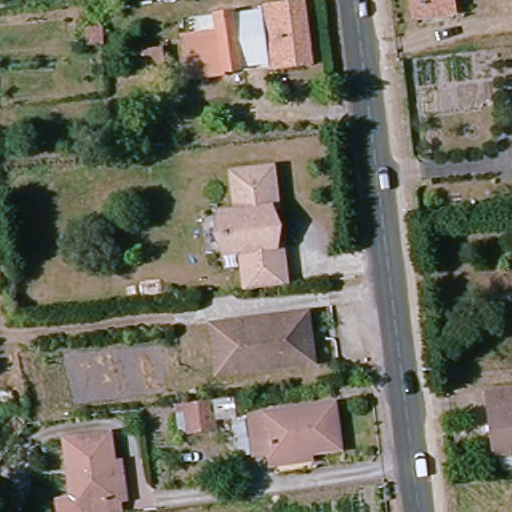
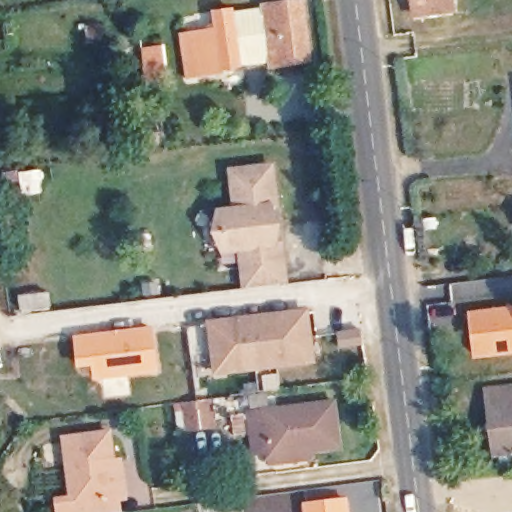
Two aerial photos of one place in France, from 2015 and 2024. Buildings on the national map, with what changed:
unchanged [(412,21),(409,0),(450,0),(452,15),(412,21)]
unchanged [(261,10),(300,5),(308,65),(268,70),(267,64),(262,21),(261,10)]
unchanged [(197,72),(193,35),(216,32),(214,15),(233,12),(235,24),(240,67),(197,72)]
unchanged [(235,24),(262,21),(267,64),(240,67),(235,24)]
unchanged [(240,294),(237,273),(234,243),(220,245),(215,211),(230,209),(224,168),(270,163),(276,205),(264,206),(268,245),(279,244),(281,267),(285,288),(240,294)]
new [(50,291),(51,309),(20,313),(17,294),(50,291)]
new [(453,302),(453,329),(431,331),(427,305),(453,302)]
new [(512,305),(512,355),(472,359),(467,310),(512,305)]
unchanged [(304,312),(308,339),(312,364),(210,377),(204,340),(203,328),(239,322),(289,315),(304,312)]
new [(153,325),(159,373),(92,381),(90,367),(77,368),(72,335),(153,325)]
unchanged [(496,459),(488,401),(512,398),(512,458),(496,459)]
unchanged [(204,404),(207,431),(182,434),(179,407),(204,404)]
unchanged [(343,453),(275,462),(274,451),(260,452),(255,418),(337,407),(343,453)]
unchanged [(51,499),(67,497),(60,441),(106,436),(110,463),(114,508),(110,509),(110,512),(53,512),(51,499)]
new [(348,496),(350,512),(303,512),(301,501),(348,496)]
new [(229,503),(229,512),(200,512),(199,503),(229,503)]

